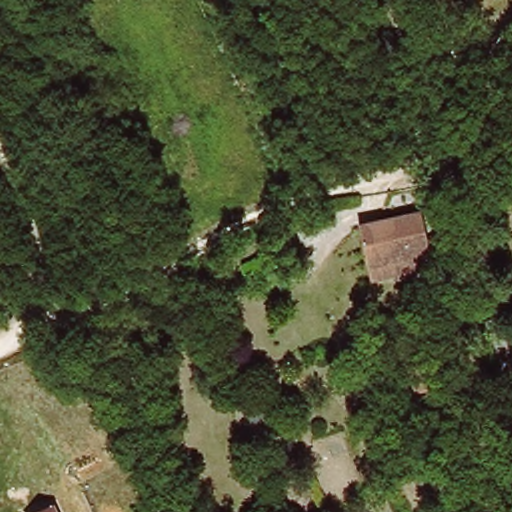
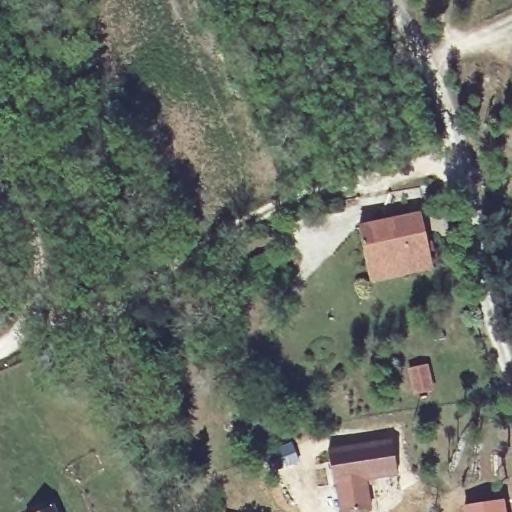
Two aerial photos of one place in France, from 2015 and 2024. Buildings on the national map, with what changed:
unchanged [(360,260),(358,222),(423,219),(426,274),(393,276),(361,277),(360,260)]
new [(395,475),(368,480),(372,509),(355,512),(340,512),(327,449),(391,439),(395,475)]
new [(507,512),(463,512),(462,505),(504,498),(507,512)]
unchanged [(58,512),(43,512),(55,505),(58,512)]

